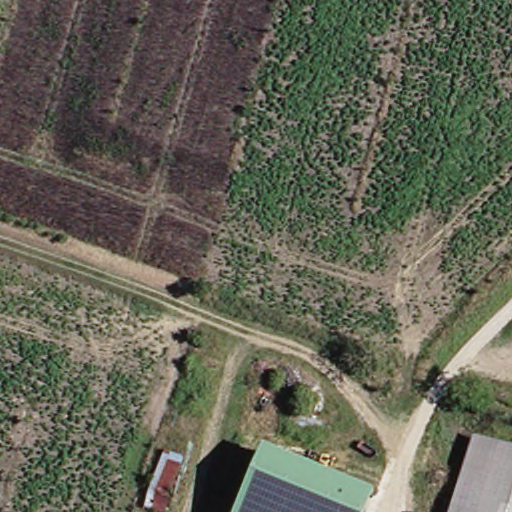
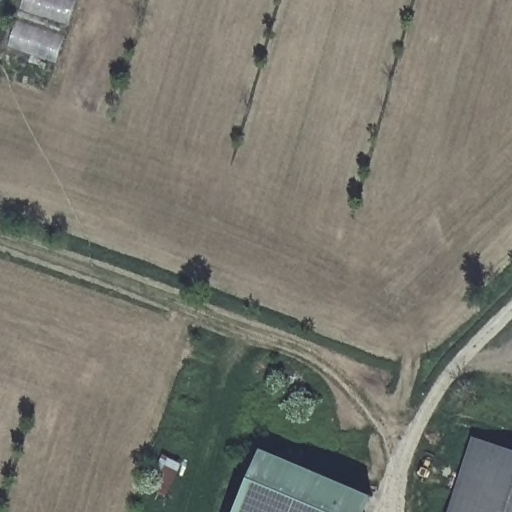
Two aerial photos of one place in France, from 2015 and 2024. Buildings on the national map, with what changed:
new [(0,0),(7,0),(0,24),(0,0)]
new [(9,46),(24,0),(78,0),(60,62),(9,46)]
unchanged [(481,439),(512,449),(512,512),(492,512),(494,508),(461,498),(481,439)]
unchanged [(172,512),(151,512),(164,449),(189,455),(172,512)]
unchanged [(272,454),(274,455),(384,498),(378,512),(249,512),(272,454)]
unchanged [(461,498),(494,508),(492,512),(456,512),(461,498)]

